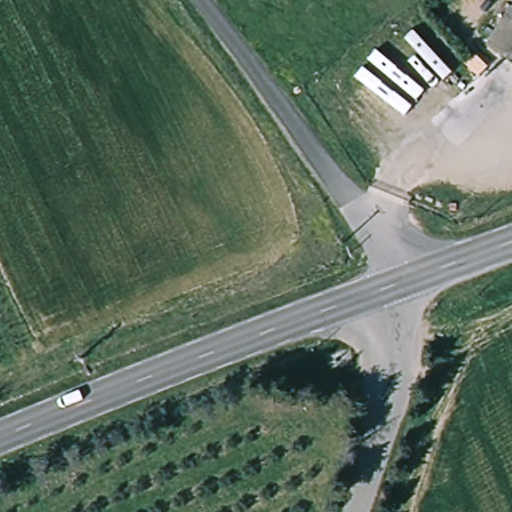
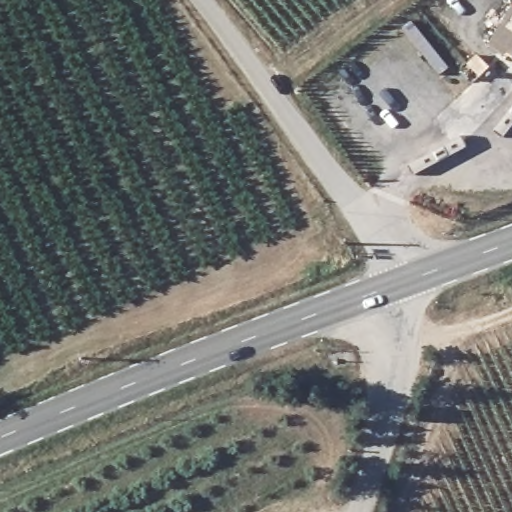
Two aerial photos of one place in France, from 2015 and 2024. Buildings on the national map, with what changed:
unchanged [(512,8),(512,60),(486,45),(512,8)]

